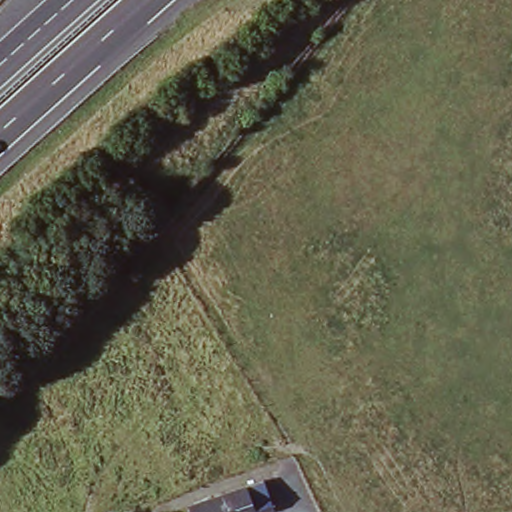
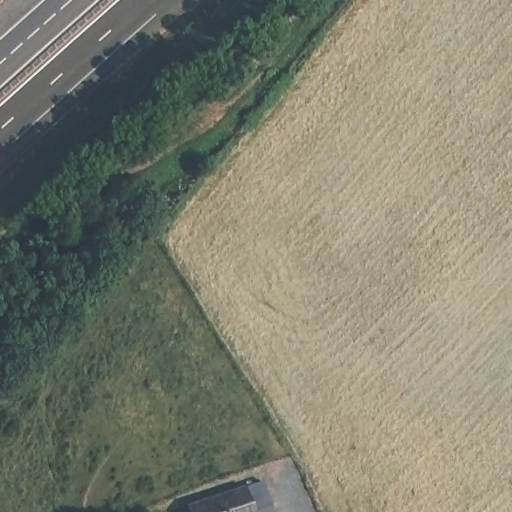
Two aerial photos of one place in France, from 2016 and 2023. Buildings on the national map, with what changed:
unchanged [(250,512),(187,512),(185,505),(241,485),(250,512)]

